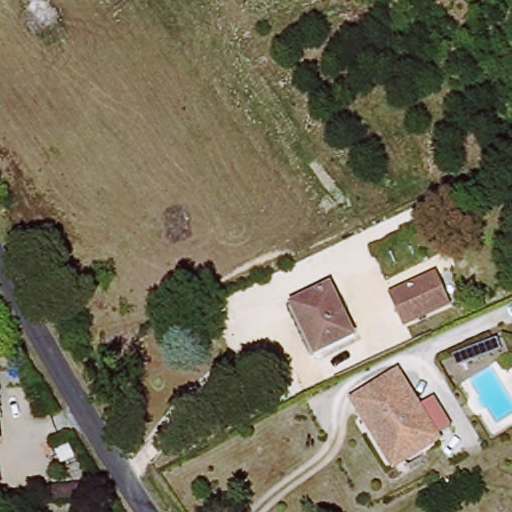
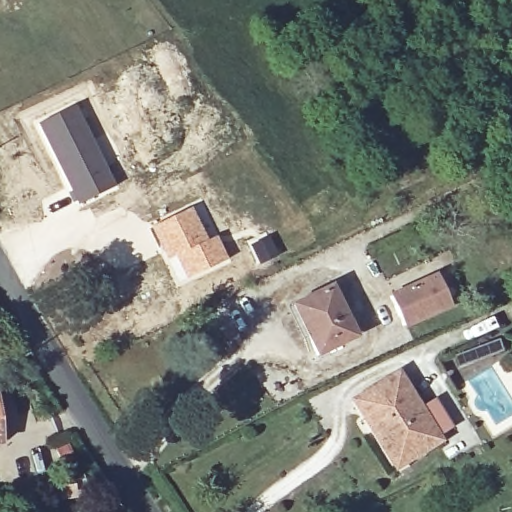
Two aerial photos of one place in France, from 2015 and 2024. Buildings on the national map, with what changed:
new [(77,102),(115,184),(75,205),(37,122),(77,102)]
new [(189,206),(206,239),(215,235),(227,260),(185,281),(171,260),(165,262),(148,227),(189,206)]
unchanged [(451,302),(404,326),(389,297),(439,275),(451,302)]
unchanged [(356,337),(318,355),(295,303),(332,286),(356,337)]
unchanged [(399,372),(423,406),(435,400),(455,430),(444,438),(446,442),(395,475),(351,400),(399,372)]

